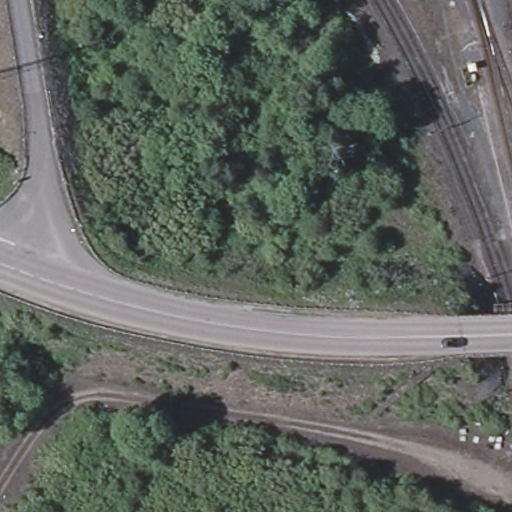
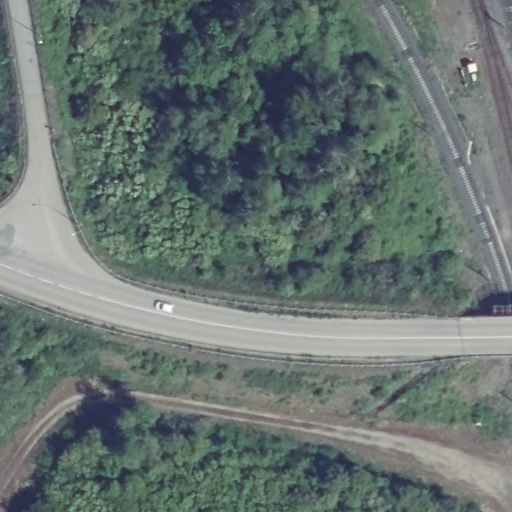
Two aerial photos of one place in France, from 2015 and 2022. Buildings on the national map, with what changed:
[]

